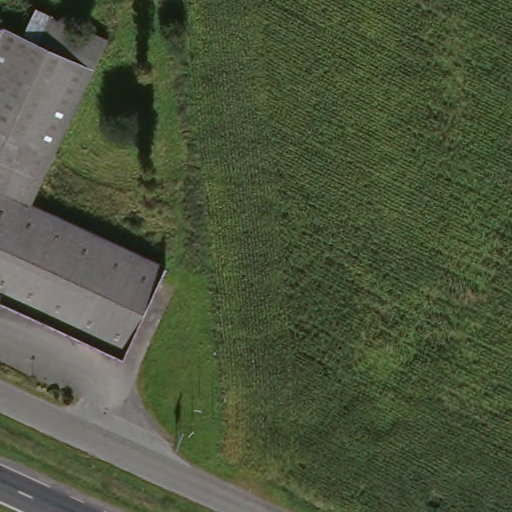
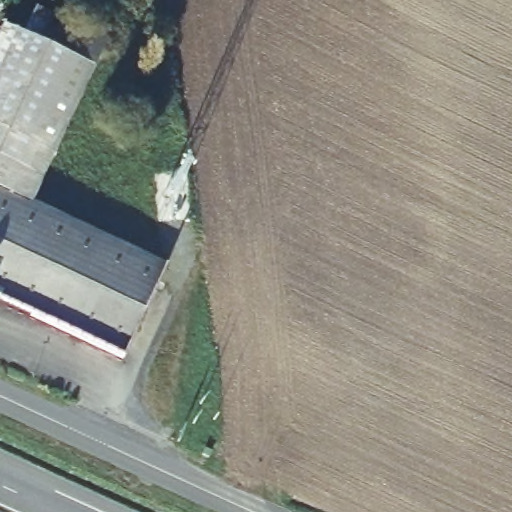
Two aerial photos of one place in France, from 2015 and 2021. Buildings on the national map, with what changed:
unchanged [(6,18),(14,0),(38,0),(99,28),(87,54),(6,18)]
unchanged [(23,199),(160,261),(119,351),(0,297),(0,15),(6,18),(87,54),(23,199)]

